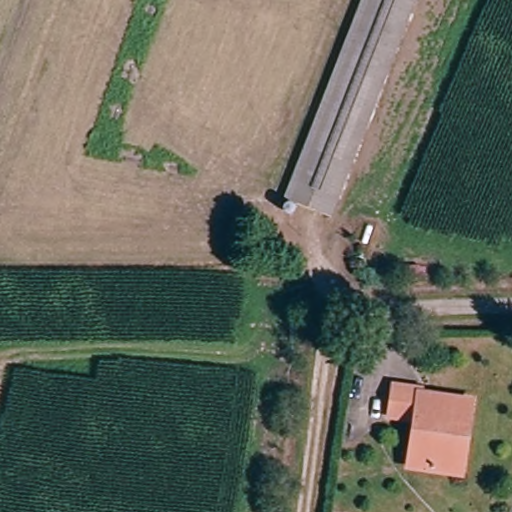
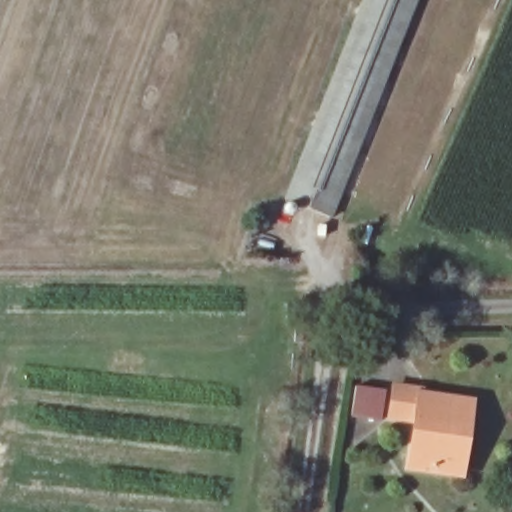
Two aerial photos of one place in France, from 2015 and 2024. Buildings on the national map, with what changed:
unchanged [(363,0),(414,0),(332,212),(287,195),(363,0)]
unchanged [(415,423),(389,419),(393,387),(420,391),(419,396),(470,403),(467,429),(458,428),(452,474),(408,469),(415,423)]

